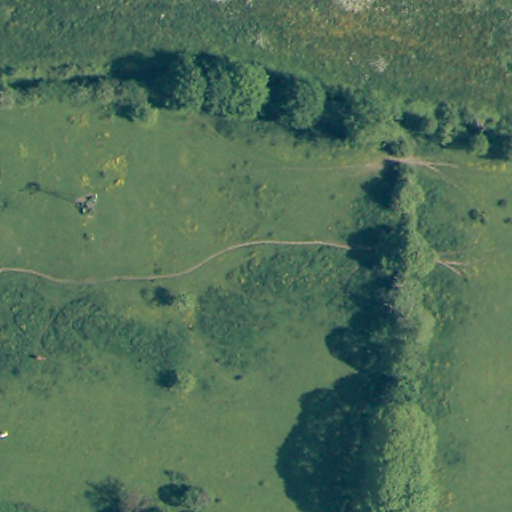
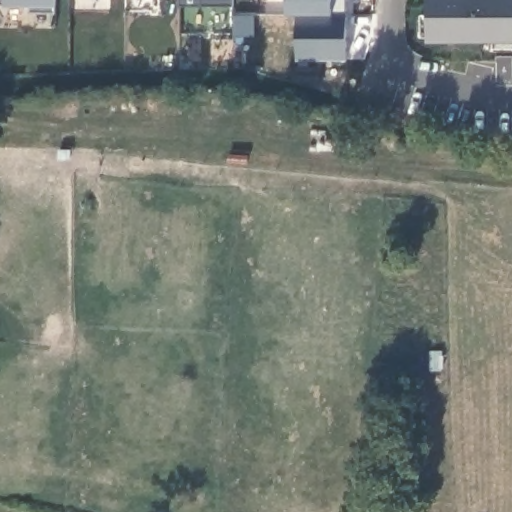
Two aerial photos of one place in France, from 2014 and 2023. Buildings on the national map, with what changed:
new [(31,5),(0,5),(0,0),(57,0),(58,14),(31,14),(31,5)]
new [(201,12),(201,0),(233,0),(233,12),(201,12)]
new [(429,41),(429,0),(512,0),(512,42),(429,41)]
new [(296,19),(346,19),(346,63),(296,63),(296,19)]

